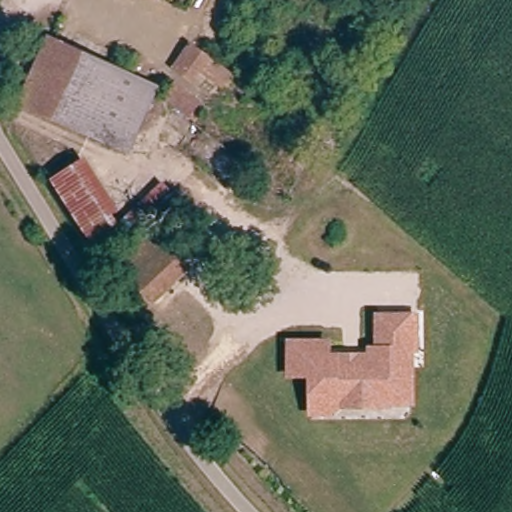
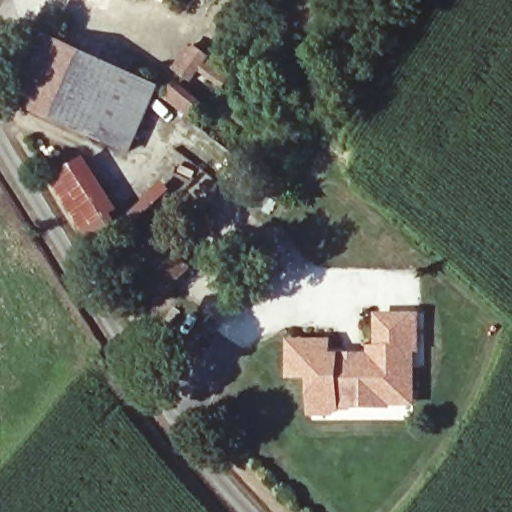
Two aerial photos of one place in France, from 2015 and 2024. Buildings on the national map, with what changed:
unchanged [(47,38),(154,84),(127,146),(19,100),(25,86),(46,37),(47,38)]
unchanged [(228,72),(219,84),(196,68),(189,78),(171,65),(187,42),(228,72)]
unchanged [(198,100),(195,104),(201,109),(195,119),(160,97),(173,81),(198,100)]
unchanged [(111,209),(79,229),(50,180),(83,161),(111,209)]
unchanged [(196,270),(160,309),(112,265),(149,227),(196,270)]
unchanged [(342,397),(343,404),(339,409),(318,411),(314,373),(292,376),(288,343),(326,339),(327,345),(370,340),(377,339),(373,307),(411,303),(415,333),(410,334),(390,336),(397,391),(342,397)]
unchanged [(418,399),(411,406),(319,417),(318,411),(339,409),(343,404),(342,397),(397,391),(390,336),(410,334),(418,399)]

